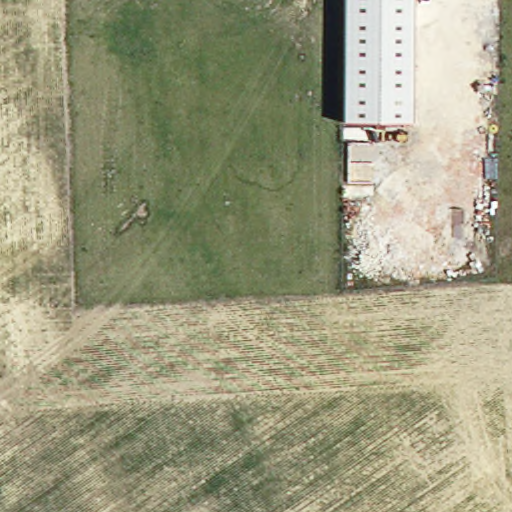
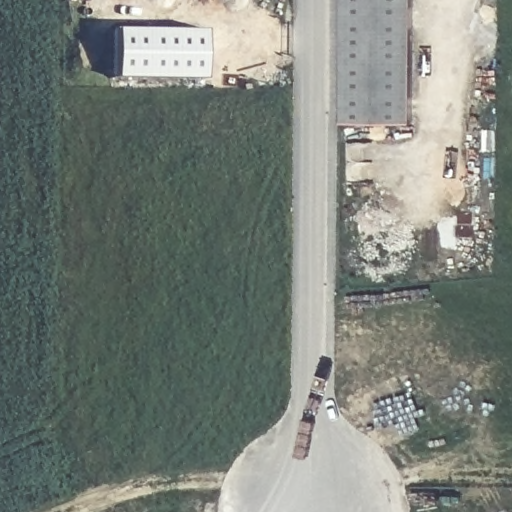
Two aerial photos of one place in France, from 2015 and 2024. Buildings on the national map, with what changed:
unchanged [(412,125),(342,125),(345,0),(414,0),(412,125)]
new [(205,77),(116,76),(116,27),(205,29),(205,77)]

